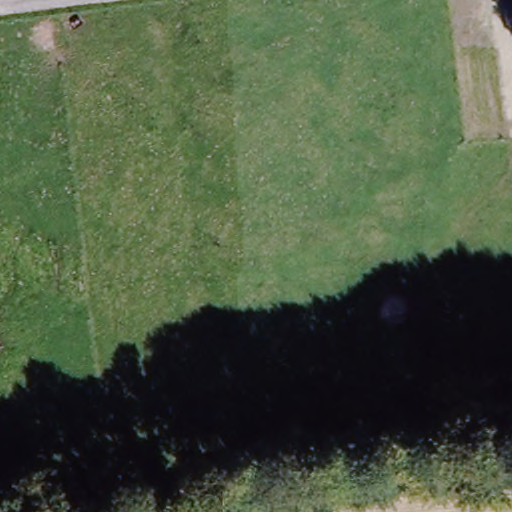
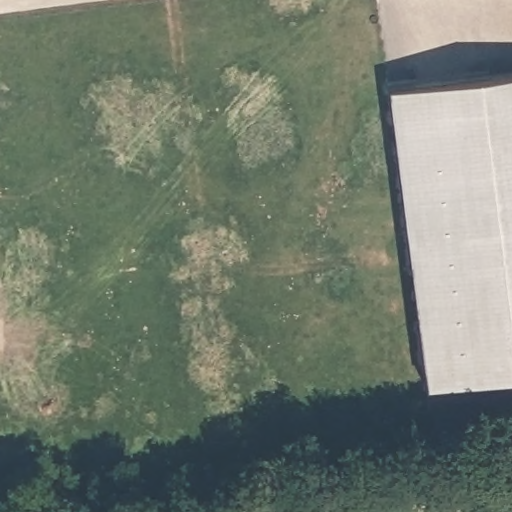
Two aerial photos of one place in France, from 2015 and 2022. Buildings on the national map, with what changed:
new [(512,364),(413,377),(373,79),(512,60),(512,364)]

